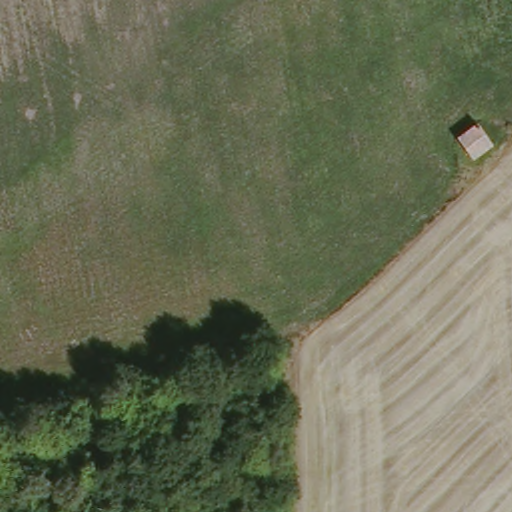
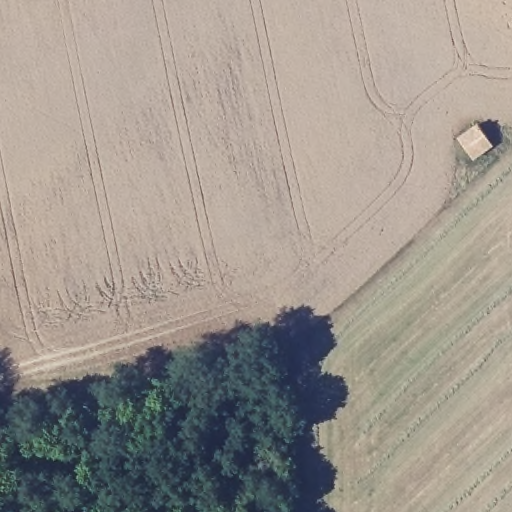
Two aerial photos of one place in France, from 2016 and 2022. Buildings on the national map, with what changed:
unchanged [(458,134),(478,119),(495,139),(477,156),(458,134)]

